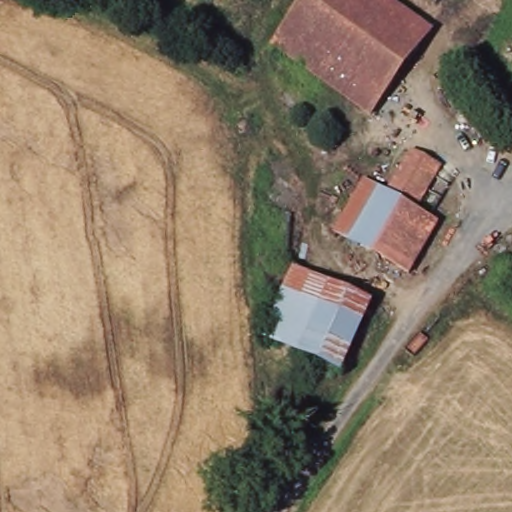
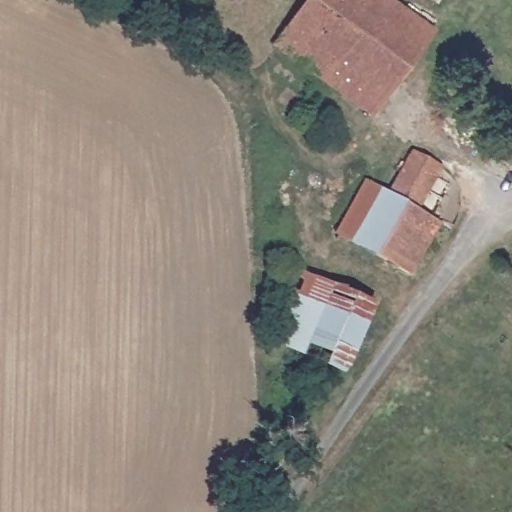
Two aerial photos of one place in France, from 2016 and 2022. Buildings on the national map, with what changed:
unchanged [(385,111),(285,51),(315,0),(404,0),(440,20),(385,111)]
unchanged [(360,185),(372,190),(382,195),(406,150),(435,164),(414,210),(436,224),(411,274),(373,257),(350,244),(335,235),(360,185)]
unchanged [(266,333),(296,265),(349,290),(372,300),(344,365),(315,353),(266,333)]

